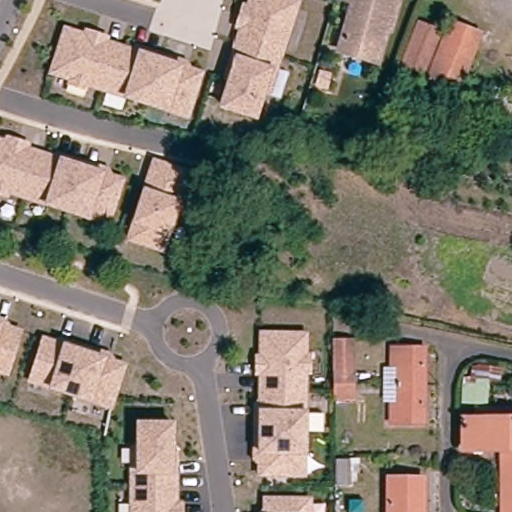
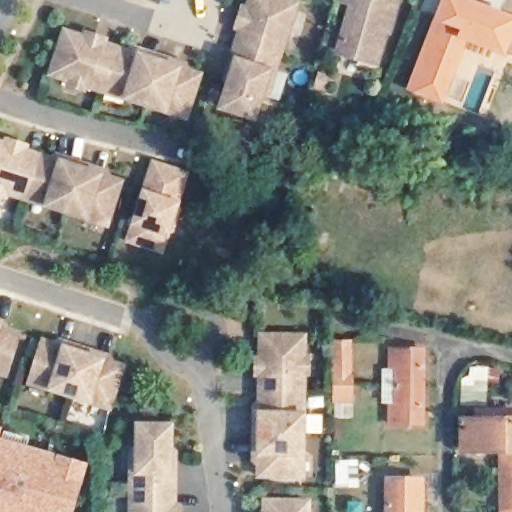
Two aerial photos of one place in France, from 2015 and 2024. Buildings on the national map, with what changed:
unchanged [(273,93),(268,91),(257,123),(219,111),(227,81),(224,80),(239,34),(234,31),(242,5),(245,5),(247,0),(296,0),(302,2),(273,93)]
unchanged [(397,10),(386,41),(382,40),(370,72),(334,60),(351,12),(333,5),(335,0),(386,0),(384,5),(397,10)]
new [(475,0),(512,14),(512,55),(507,54),(505,57),(468,43),(443,105),(404,90),(439,0),(475,0)]
demolished [(450,25),(481,37),(457,96),(426,84),(429,78),(446,35),(450,25)]
unchanged [(167,114),(123,99),(89,89),(86,96),(65,87),(66,81),(49,76),(62,27),(83,31),(84,28),(110,37),(109,43),(129,49),(137,44),(192,62),(195,71),(204,72),(189,121),(167,114)]
unchanged [(4,134),(33,144),(31,149),(51,155),(58,151),(112,167),(114,174),(126,178),(109,232),(88,222),(44,208),(11,197),(9,203),(0,200),(0,139),(2,139),(4,134)]
unchanged [(195,172),(170,257),(128,242),(153,158),(195,172)]
unchanged [(11,328),(23,332),(8,378),(0,376),(0,316),(6,318),(11,328)]
unchanged [(309,332),(308,353),(313,352),(313,378),(308,378),(307,411),(306,454),(305,481),(259,480),(260,467),(252,461),(252,406),(258,400),(257,378),(254,378),(254,356),(258,355),(258,332),(309,332)]
unchanged [(114,412),(29,387),(41,338),(53,342),(59,337),(114,354),(117,363),(127,367),(114,412)]
unchanged [(353,403),(336,404),(334,343),(351,342),(353,403)]
unchanged [(424,425),(390,425),(390,403),(395,403),(395,373),(391,373),(391,351),(424,351),(424,425)]
unchanged [(466,387),(487,387),(486,408),(464,407),(466,387)]
unchanged [(462,458),(462,426),(477,426),(477,417),(499,418),(499,426),(512,426),(512,512),(500,512),(499,458),(462,458)]
unchanged [(128,447),(135,447),(136,421),(174,421),(174,447),(179,447),(179,501),(184,501),(184,512),(128,512),(128,447)]
new [(0,427),(4,428),(1,438),(90,463),(76,512),(0,512),(0,427)]
unchanged [(423,512),(387,512),(388,481),(424,482),(423,512)]
unchanged [(264,510),(264,498),(310,498),(311,512),(260,512),(264,510)]

